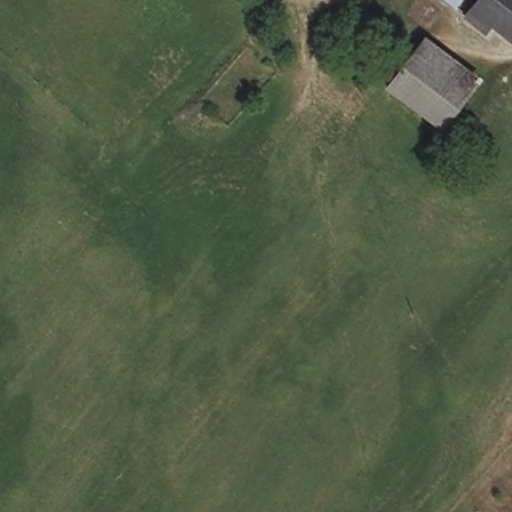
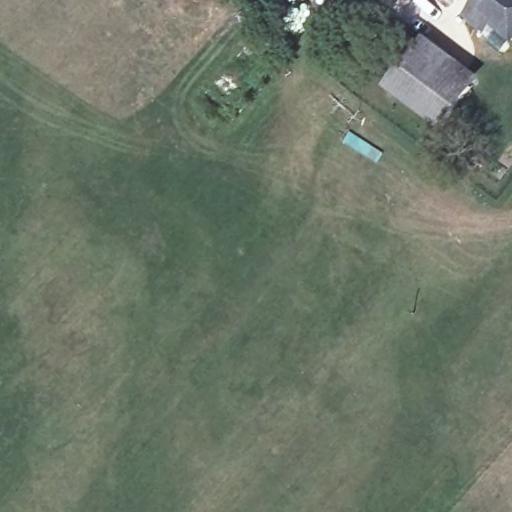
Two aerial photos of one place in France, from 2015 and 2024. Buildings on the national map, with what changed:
unchanged [(497,16),(492,23),(472,8),(478,0),(512,0),(512,28),(497,16)]
unchanged [(472,84),(442,119),(393,79),(424,43),(472,84)]

